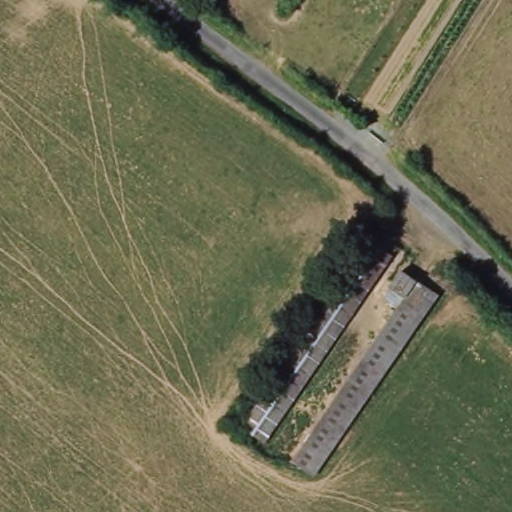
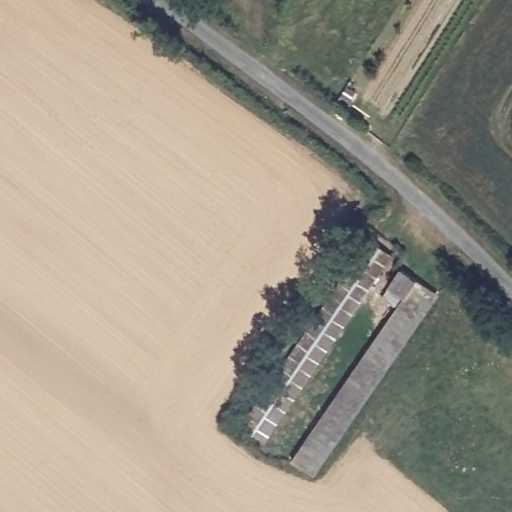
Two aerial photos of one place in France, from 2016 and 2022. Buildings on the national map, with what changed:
unchanged [(372,237),(395,252),(268,439),(245,424),(372,237)]
unchanged [(390,286),(402,268),(438,292),(313,475),(293,461),(405,297),(390,286)]

